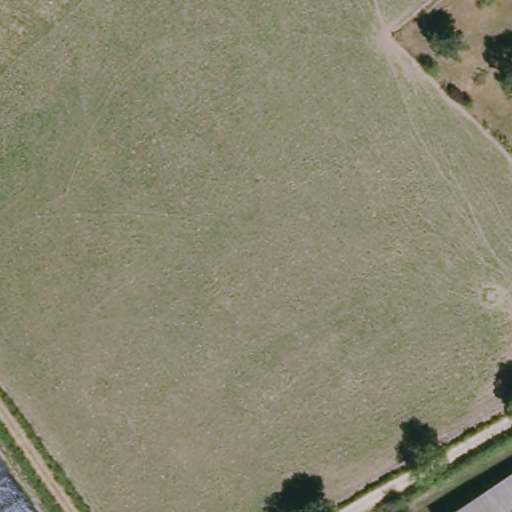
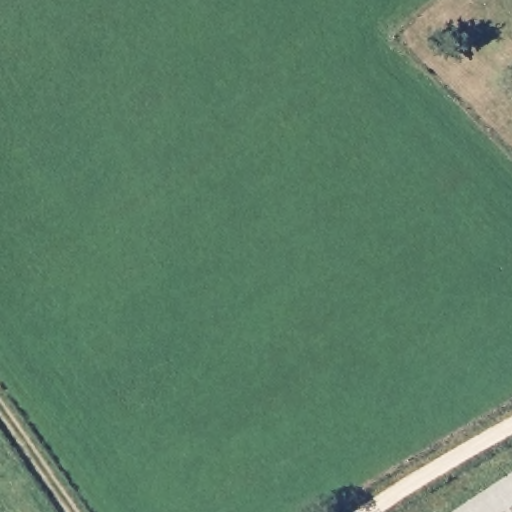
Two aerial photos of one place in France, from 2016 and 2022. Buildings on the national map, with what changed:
unchanged [(512,470),(512,512),(449,512),(512,470)]

